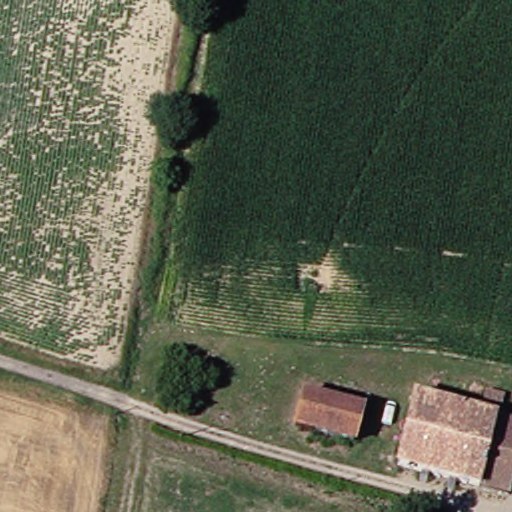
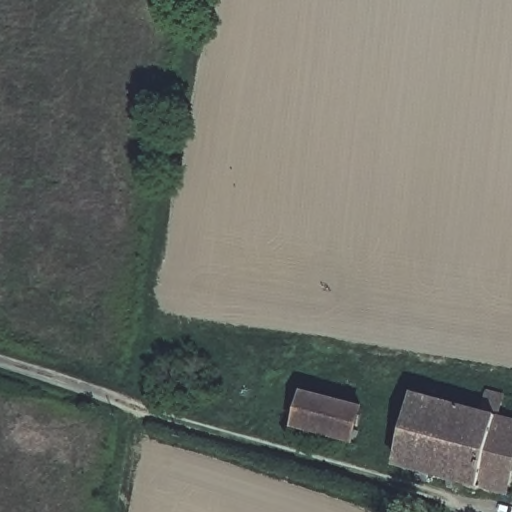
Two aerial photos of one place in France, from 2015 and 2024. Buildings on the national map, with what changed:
unchanged [(389,463),(407,394),(474,414),(481,390),(494,393),(488,415),(470,485),(389,463)]
unchanged [(287,426),(295,393),(351,408),(343,441),(287,426)]
unchanged [(488,415),(512,422),(512,433),(498,491),(470,485),(488,415)]

